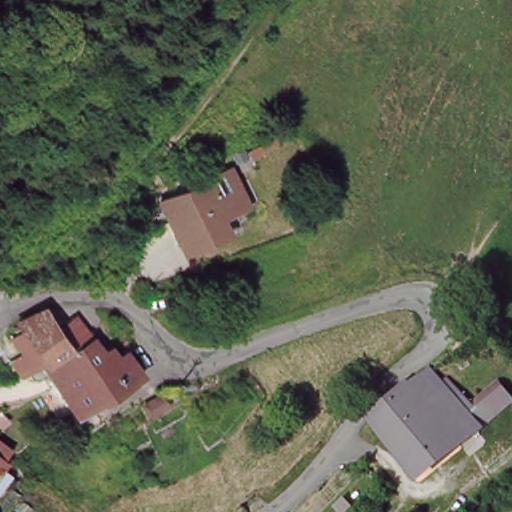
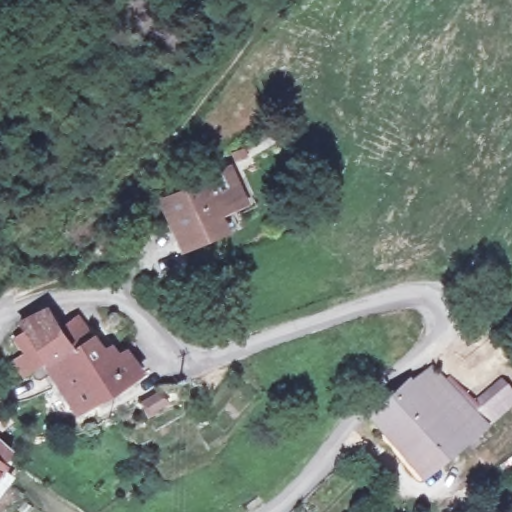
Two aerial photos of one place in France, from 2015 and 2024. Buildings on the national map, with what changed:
unchanged [(239,195),(206,215),(217,232),(187,251),(162,210),(192,191),(187,184),(220,164),(239,195)]
unchanged [(35,362),(24,369),(4,340),(16,333),(11,325),(17,322),(32,319),(40,330),(59,317),(82,352),(87,350),(95,361),(119,346),(122,352),(124,372),(84,403),(79,407),(67,412),(35,362)]
unchanged [(510,401),(420,485),(375,432),(387,415),(412,390),(419,397),(438,380),(445,372),(470,402),(492,382),(510,401)]

